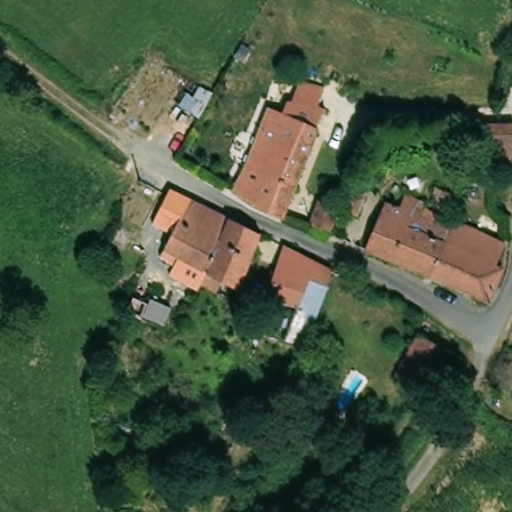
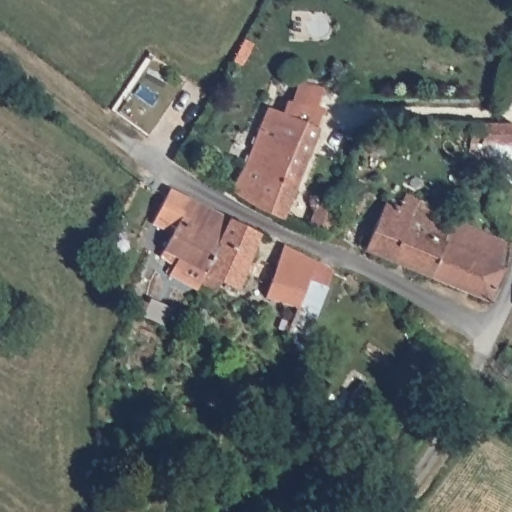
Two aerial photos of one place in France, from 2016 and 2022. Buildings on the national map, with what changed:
unchanged [(273,108),(277,110),(287,114),(290,108),(292,102),(330,110),(329,113),(323,130),(287,221),(258,208),(235,192),(272,111),(273,108)]
unchanged [(512,171),(512,185),(500,182),(500,168),(467,159),(469,144),(470,124),(512,124),(512,159),(511,171),(512,171)]
unchanged [(356,217),(340,211),(351,181),(368,188),(356,217)]
unchanged [(399,208),(404,195),(424,203),(423,208),(445,218),(451,220),(430,279),(364,251),(384,203),(399,208)]
unchanged [(229,220),(228,221),(201,272),(178,259),(173,267),(160,258),(189,200),(229,220)]
unchanged [(308,225),(318,201),(339,211),(330,235),(308,225)]
unchanged [(238,291),(222,283),(216,292),(201,283),(206,274),(201,272),(228,221),(229,220),(259,235),(238,291)]
unchanged [(505,244),(496,266),(503,269),(487,303),(430,279),(451,220),(505,244)]
unchanged [(331,266),(304,341),(285,335),(298,303),(266,293),(283,242),(331,266)]
unchanged [(147,305),(141,319),(126,313),(132,299),(147,305)]
unchanged [(465,364),(464,365),(442,398),(407,376),(401,385),(392,379),(397,370),(418,334),(465,364)]

